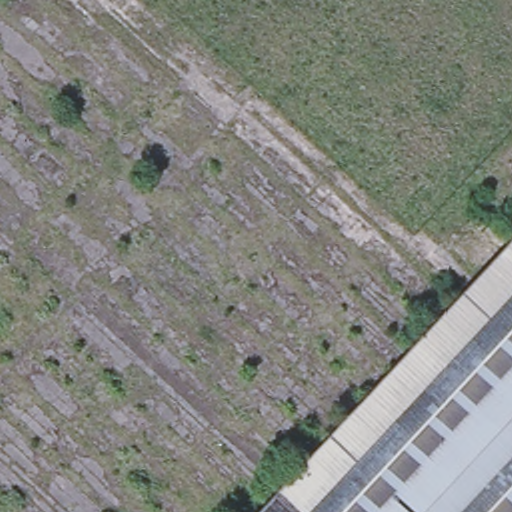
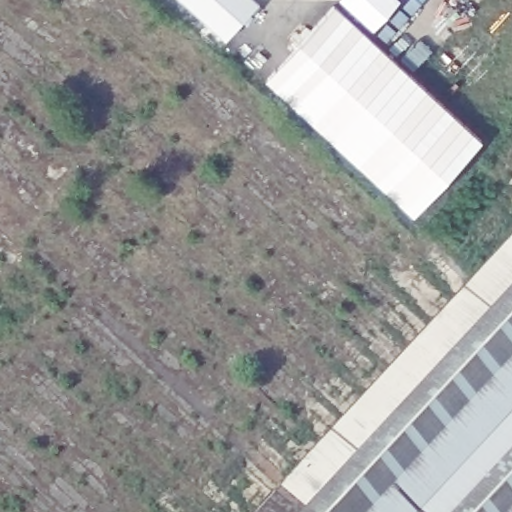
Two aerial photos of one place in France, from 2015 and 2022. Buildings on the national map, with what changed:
new [(227,47),(174,0),(252,0),(261,8),(227,47)]
new [(335,9),(482,147),(413,224),(264,86),(335,9)]
unchanged [(512,235),(512,512),(319,512),(285,480),(512,235)]
unchanged [(285,480),(319,512),(273,512),(263,503),(285,480)]
unchanged [(263,503),(273,512),(255,512),(263,503)]

